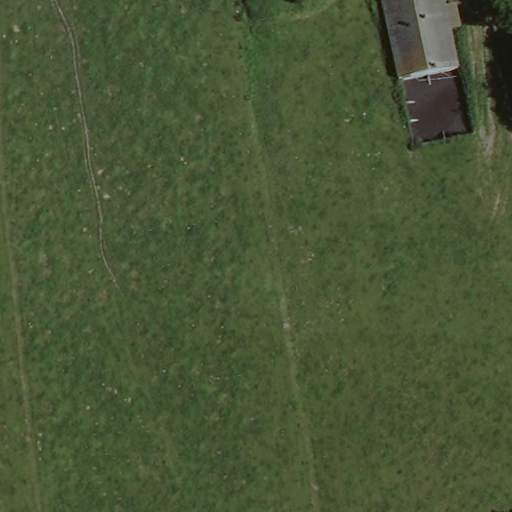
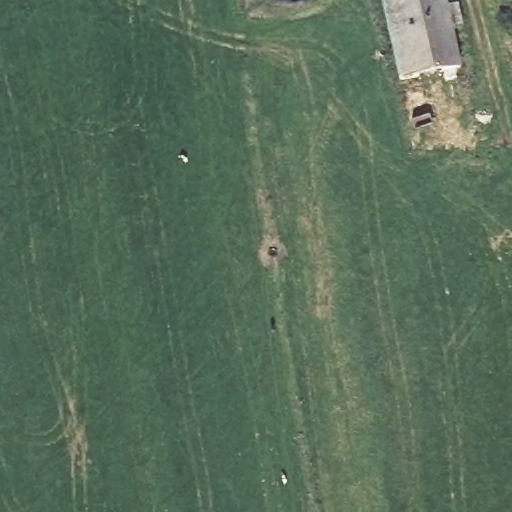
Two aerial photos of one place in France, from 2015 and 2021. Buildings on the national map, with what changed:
unchanged [(386,0),(449,0),(452,13),(458,11),(466,34),(457,37),(465,72),(406,85),(386,0)]

